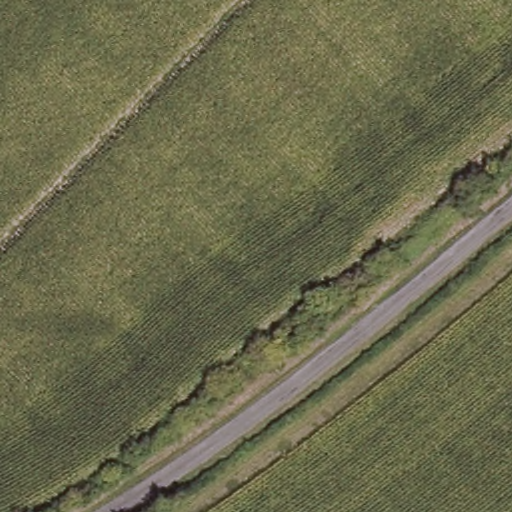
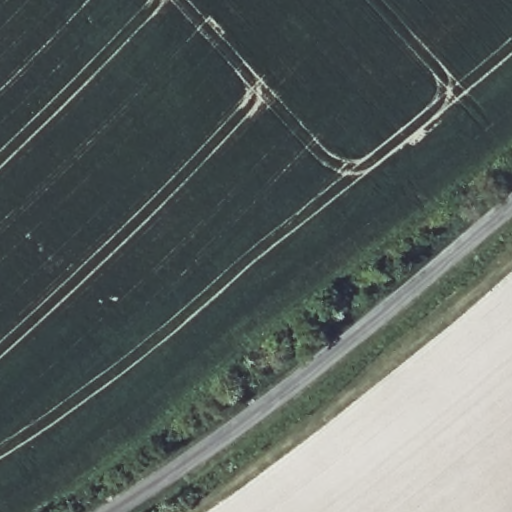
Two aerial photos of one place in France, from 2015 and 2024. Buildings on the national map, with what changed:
[]

